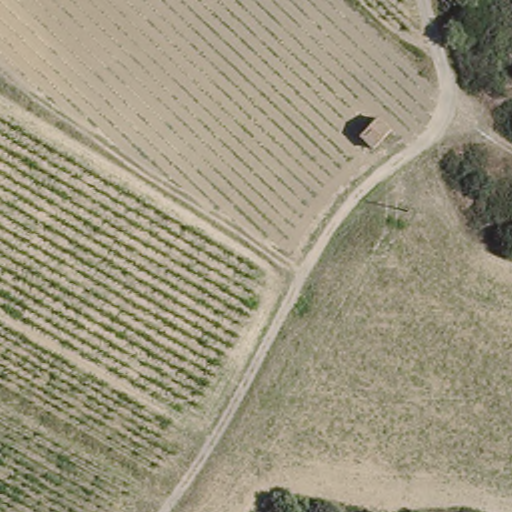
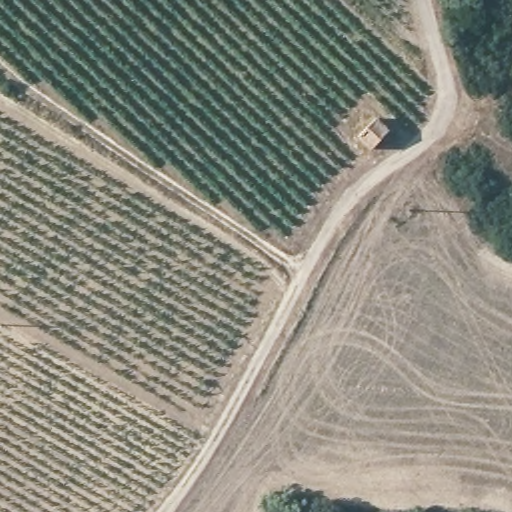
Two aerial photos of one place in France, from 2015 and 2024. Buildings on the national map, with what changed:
unchanged [(393,126),(372,151),(358,137),(379,118),(393,126)]

